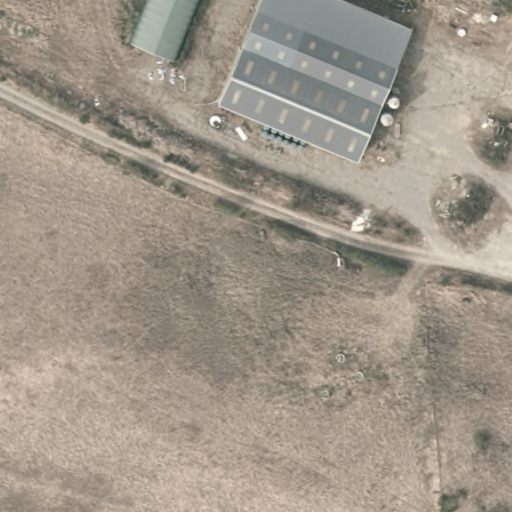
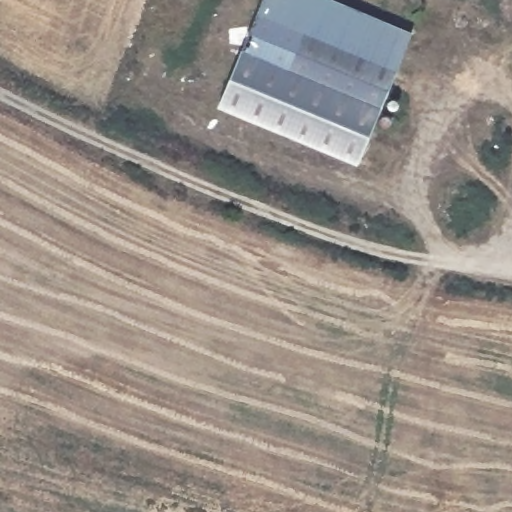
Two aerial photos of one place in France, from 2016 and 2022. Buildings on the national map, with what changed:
demolished [(148,0),(197,0),(172,63),(129,48),(148,0)]
unchanged [(338,0),(411,31),(396,69),(358,164),(217,105),(256,12),(261,0),(338,0)]

